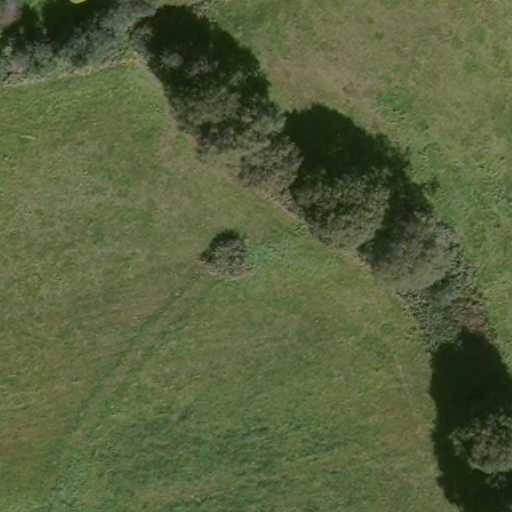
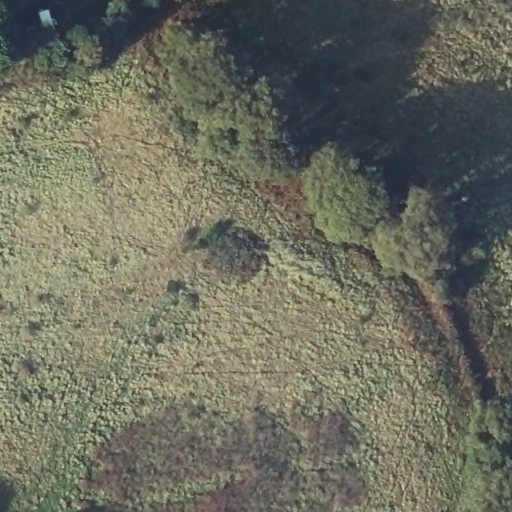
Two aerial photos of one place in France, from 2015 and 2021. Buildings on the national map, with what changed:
[]

